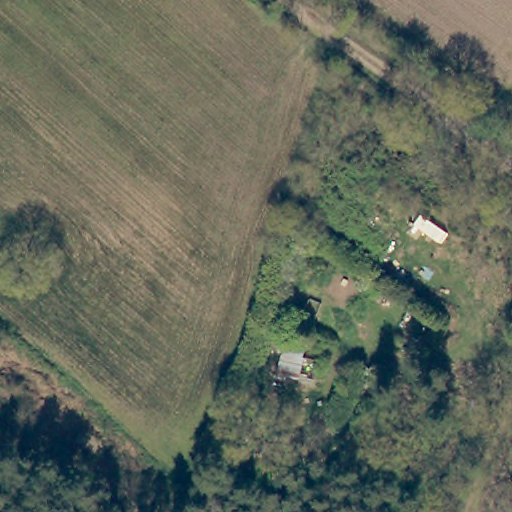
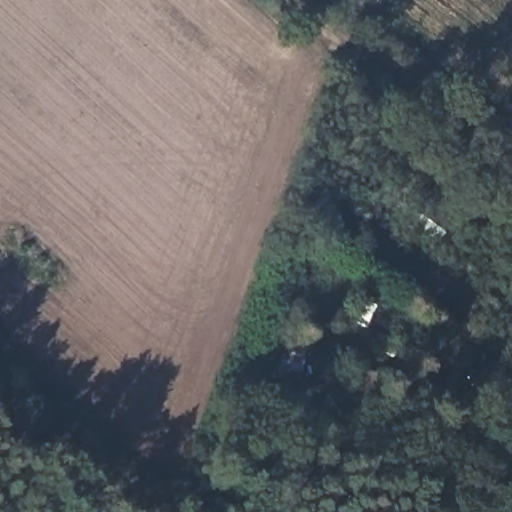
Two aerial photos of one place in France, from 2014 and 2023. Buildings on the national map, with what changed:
unchanged [(285,371),(274,367),(285,340),(316,350),(300,391),(280,383),(285,371)]
unchanged [(110,451),(101,462),(80,445),(88,434),(110,451)]

